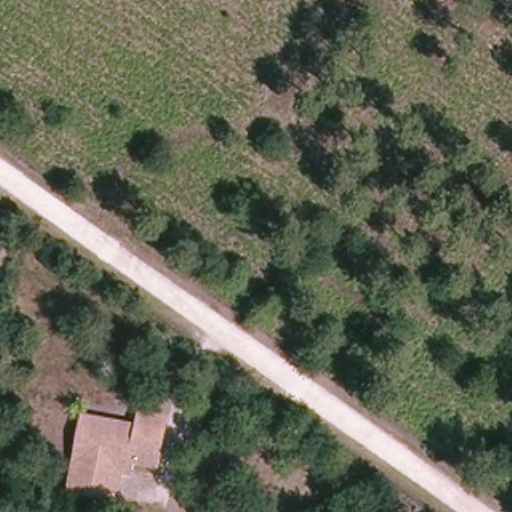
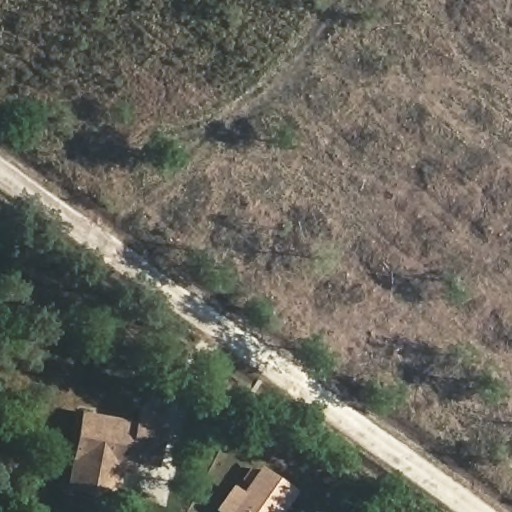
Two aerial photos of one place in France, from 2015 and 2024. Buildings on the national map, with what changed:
unchanged [(142,428),(142,431),(149,432),(150,430),(168,432),(161,467),(136,462),(134,472),(124,471),(118,500),(73,492),(87,418),(142,428)]
new [(295,492),(281,512),(224,512),(221,510),(237,489),(247,496),(265,471),(295,492)]

